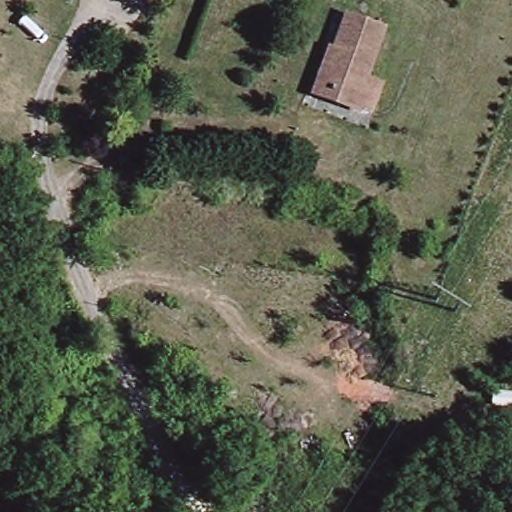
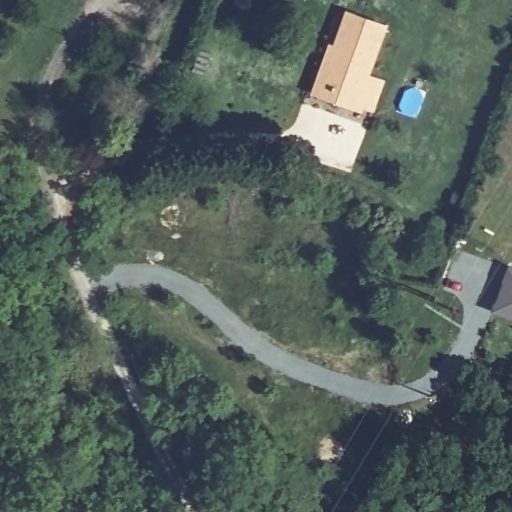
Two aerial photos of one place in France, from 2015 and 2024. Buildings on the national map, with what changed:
unchanged [(349,7),(383,20),(366,69),(380,73),(370,99),(358,94),(354,102),(310,85),(323,50),(333,53),(349,7)]
new [(512,268),(512,319),(492,311),(507,266),(512,268)]

